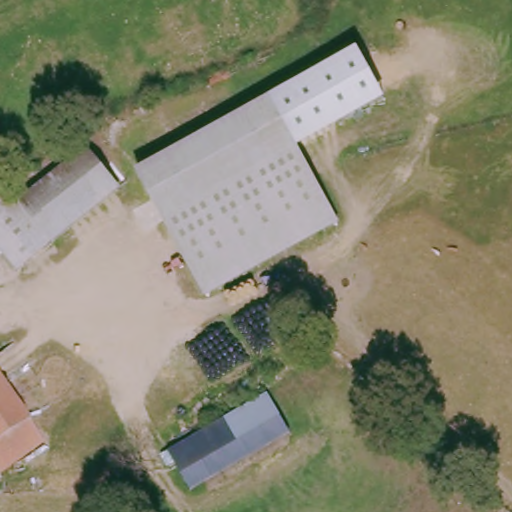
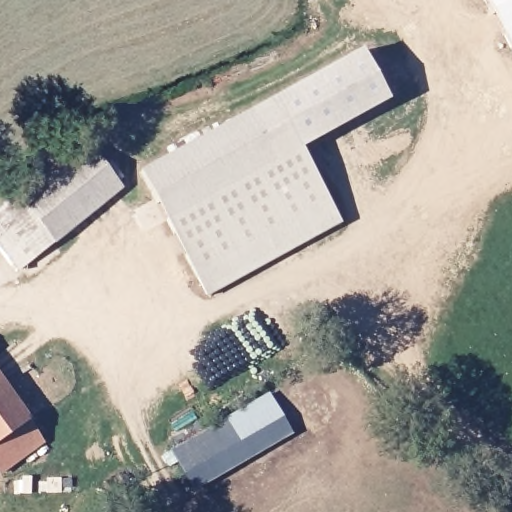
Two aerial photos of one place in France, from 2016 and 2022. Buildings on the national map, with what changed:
new [(512,0),(512,46),(487,0),(512,0)]
unchanged [(358,51),(386,101),(299,149),(273,100),(358,51)]
unchanged [(340,224),(208,295),(141,173),(273,100),(340,224)]
unchanged [(83,151),(118,191),(51,243),(18,202),(83,151)]
unchanged [(18,202),(51,243),(16,269),(0,249),(0,194),(7,188),(18,202)]
unchanged [(40,438),(0,466),(0,381),(40,438)]
unchanged [(284,433),(183,484),(163,447),(263,395),(284,433)]

